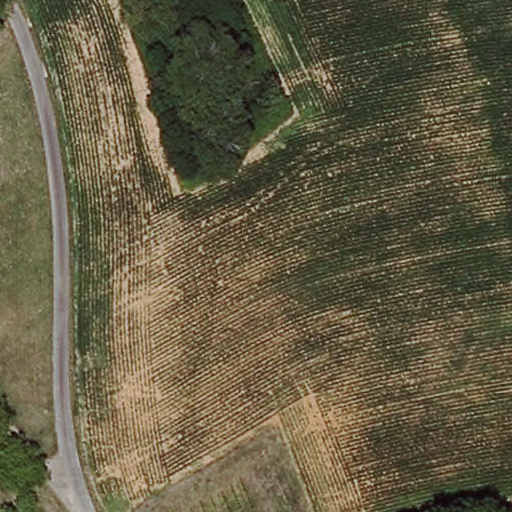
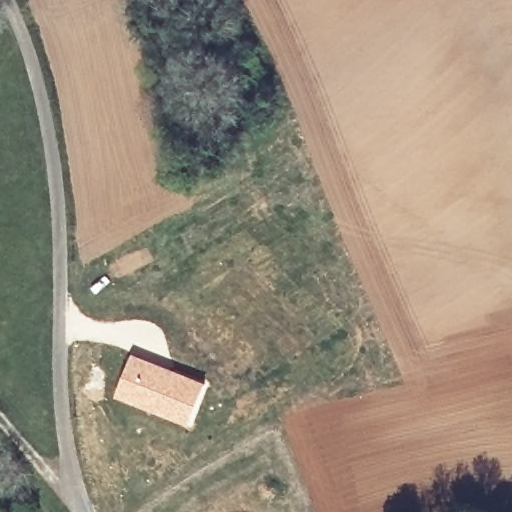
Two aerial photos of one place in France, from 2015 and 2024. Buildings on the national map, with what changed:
new [(133,351),(207,382),(190,426),(115,395),(133,351)]

